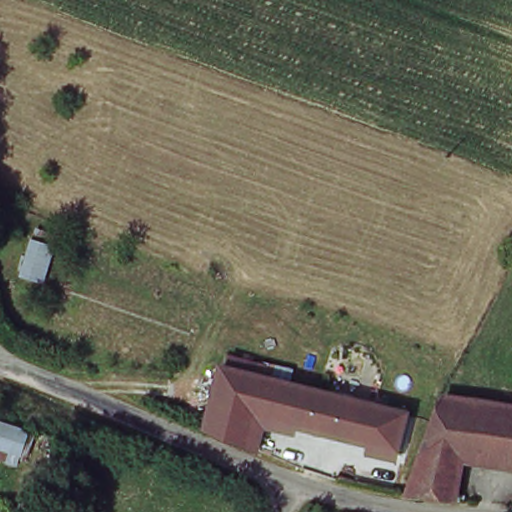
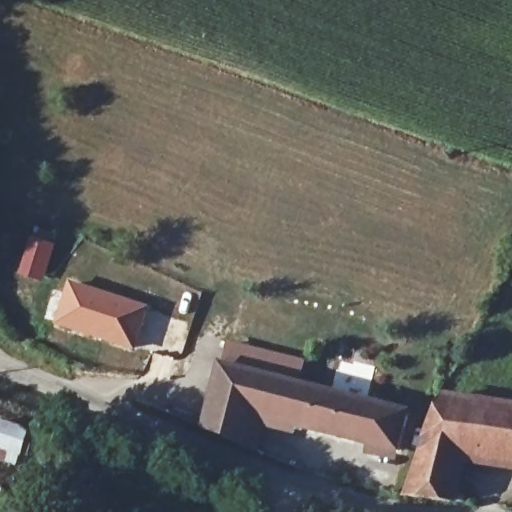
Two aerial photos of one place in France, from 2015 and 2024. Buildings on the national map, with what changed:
unchanged [(23,272),(36,228),(59,238),(46,277),(23,272)]
new [(136,352),(55,325),(70,280),(151,307),(136,352)]
unchanged [(226,365),(410,410),(404,447),(259,414),(251,443),(211,425),(226,365)]
unchanged [(454,456),(448,497),(401,491),(439,393),(462,396),(454,456)]
unchanged [(512,402),(512,463),(454,456),(462,396),(512,402)]
unchanged [(0,426),(3,417),(38,432),(21,458),(0,447),(0,426)]

